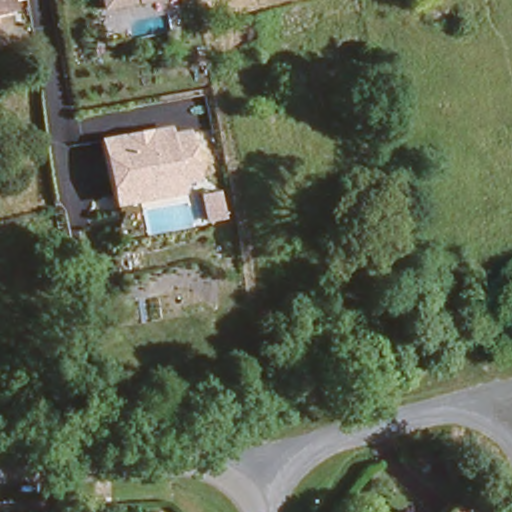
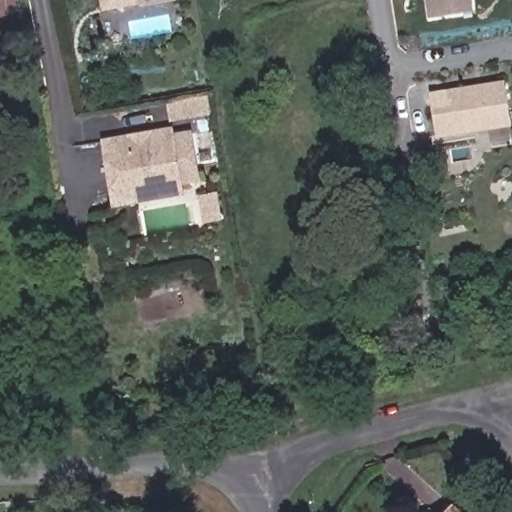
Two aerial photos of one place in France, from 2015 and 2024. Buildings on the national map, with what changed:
unchanged [(0,14),(0,0),(10,0),(12,12),(0,14)]
unchanged [(100,0),(169,0),(102,11),(100,0)]
new [(426,0),(473,0),(475,10),(429,18),(426,0)]
new [(438,136),(433,105),(453,101),(450,88),(505,78),(512,117),(512,126),(438,136)]
unchanged [(175,133),(192,130),(202,182),(184,186),(186,194),(114,208),(102,139),(174,125),(175,133)]
unchanged [(204,223),(197,195),(219,191),(225,220),(204,223)]
unchanged [(439,500),(445,505),(459,488),(487,512),(429,512),(439,500)]

